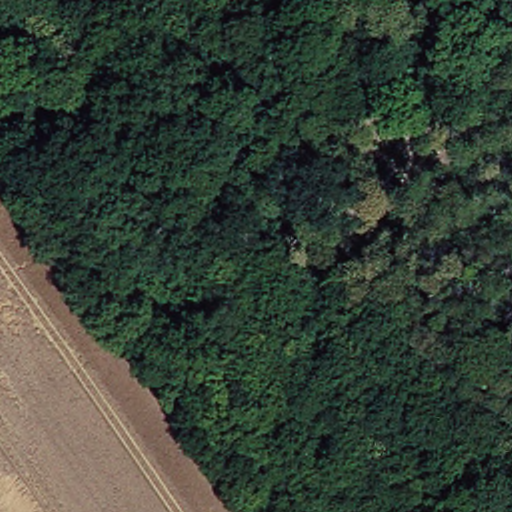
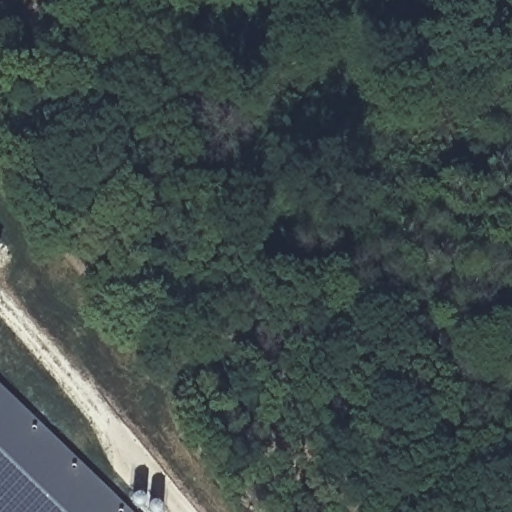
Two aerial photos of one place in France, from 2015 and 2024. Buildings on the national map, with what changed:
new [(135,512),(0,512),(0,382),(135,512)]

